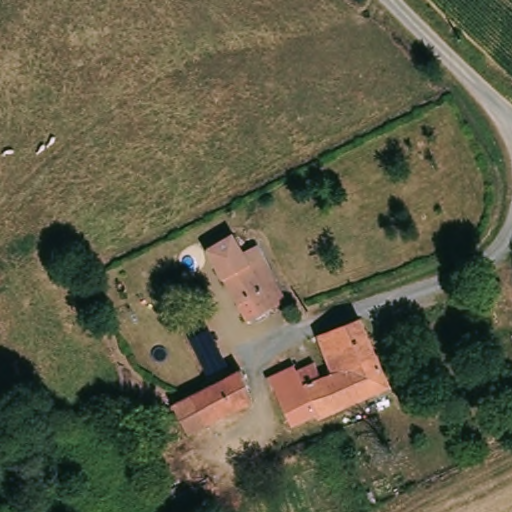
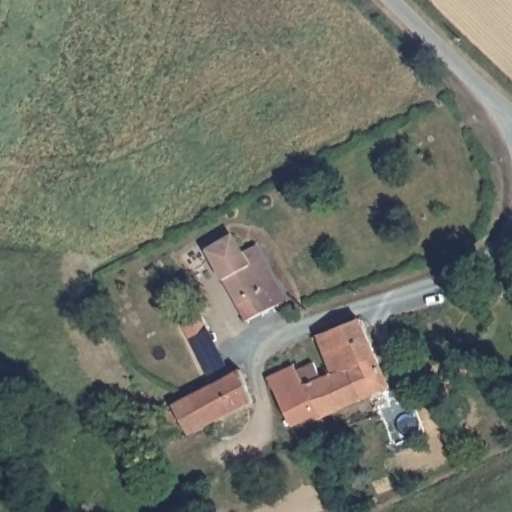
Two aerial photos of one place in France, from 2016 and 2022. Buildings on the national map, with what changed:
unchanged [(236,234),(246,250),(257,242),(292,298),(252,318),(226,273),(212,247),(236,234)]
unchanged [(299,373),(317,365),(322,376),(336,370),(323,335),(330,331),(342,328),(358,322),(384,390),(317,417),(299,373)]
unchanged [(268,373),(275,371),(295,363),(299,373),(317,417),(291,428),(273,386),(268,373)]
unchanged [(218,420),(202,393),(251,366),(265,395),(218,420)]
unchanged [(176,443),(161,415),(182,404),(202,393),(218,420),(176,443)]

